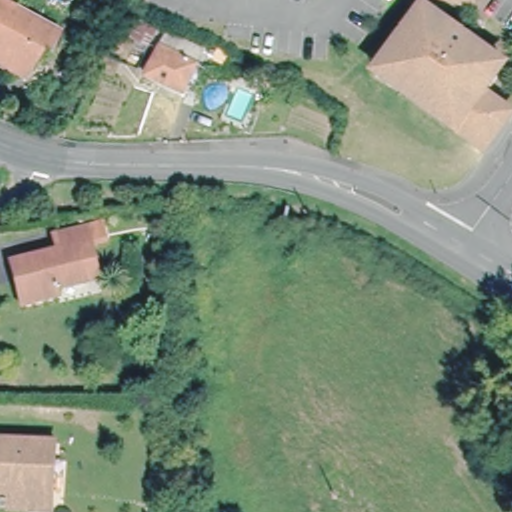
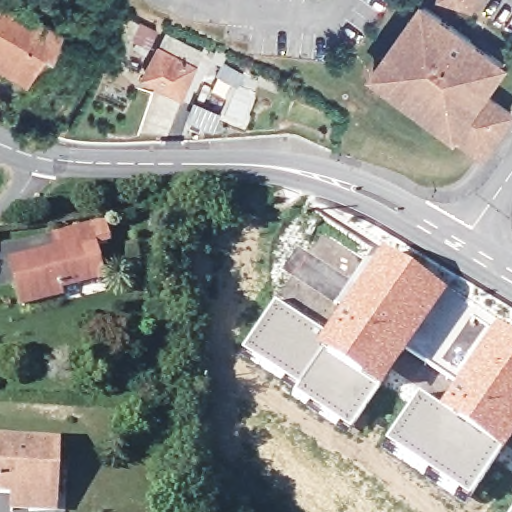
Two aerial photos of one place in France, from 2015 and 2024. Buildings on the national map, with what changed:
unchanged [(468,6),(447,0),(471,0),(468,6)]
unchanged [(56,33),(44,54),(36,49),(21,77),(17,76),(14,81),(0,73),(0,1),(56,33)]
unchanged [(479,155),(469,147),(452,134),(439,126),(386,87),(385,86),(372,77),(377,69),(398,40),(410,24),(419,11),(499,68),(500,69),(502,71),(482,98),(507,116),(508,117),(487,146),(481,155),(480,155),(479,155)]
unchanged [(149,49),(127,38),(117,33),(124,18),(134,23),(157,34),(149,49)]
unchanged [(181,97),(144,77),(159,49),(166,37),(198,54),(192,66),(197,68),(181,97)]
unchanged [(277,82),(275,88),(257,79),(260,74),(277,82)]
unchanged [(80,194),(60,194),(59,185),(59,184),(62,183),(80,183),(80,194)]
unchanged [(110,221),(112,237),(95,240),(82,242),(88,279),(60,285),(61,294),(24,301),(15,255),(68,245),(65,229),(92,224),(110,221)]
new [(273,302),(323,334),(380,252),(444,293),(425,325),(347,435),(290,396),(293,391),(239,353),(273,302)]
new [(436,412),(492,328),(512,340),(512,438),(465,504),(381,449),(415,399),(436,412)]
unchanged [(25,501),(25,484),(6,483),(7,432),(63,434),(62,485),(62,502),(25,501)]

